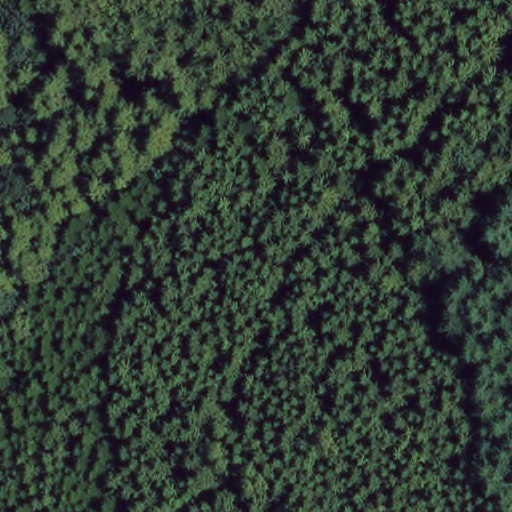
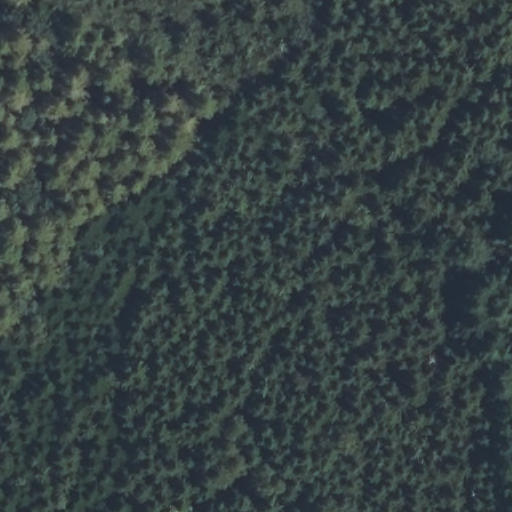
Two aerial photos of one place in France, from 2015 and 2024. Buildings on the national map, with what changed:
[]

